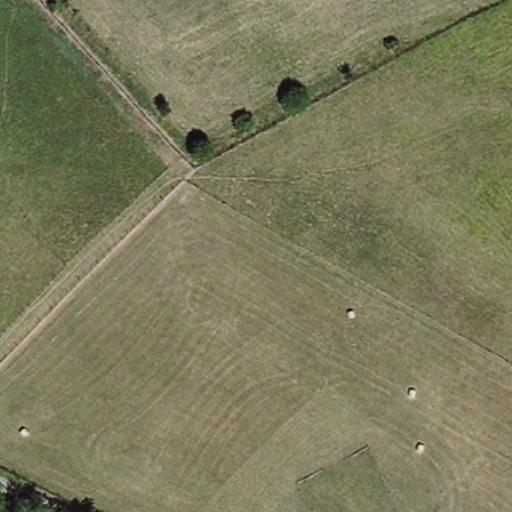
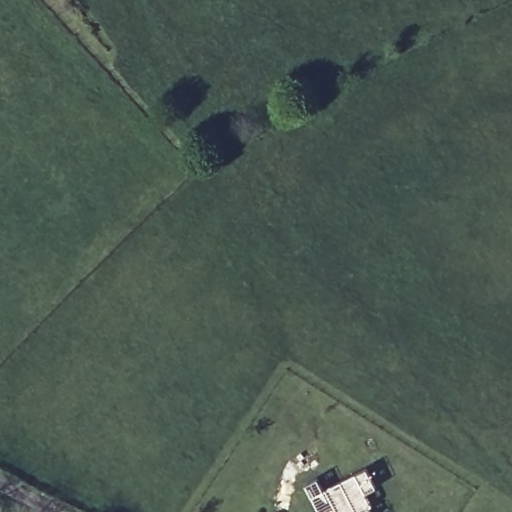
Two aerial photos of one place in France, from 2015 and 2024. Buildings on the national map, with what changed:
new [(317,476),(323,487),(366,466),(377,487),(365,493),(372,512),(318,512),(303,483),(317,476)]

